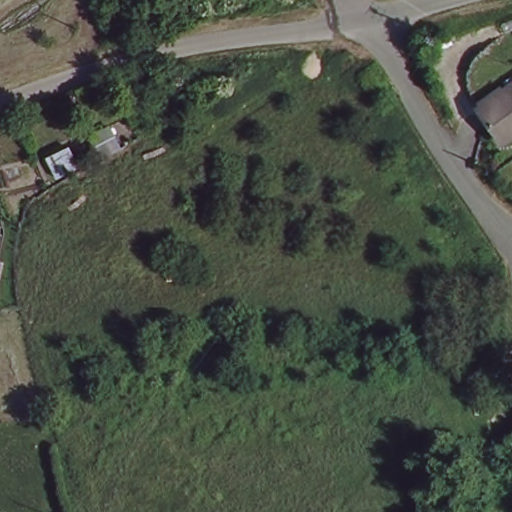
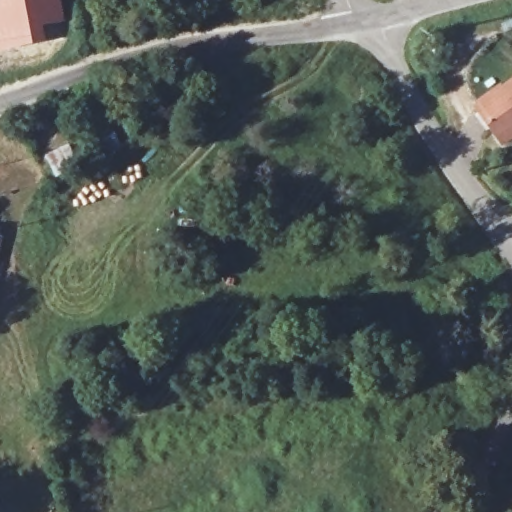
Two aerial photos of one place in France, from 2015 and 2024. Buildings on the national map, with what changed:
new [(65,22),(43,26),(45,32),(33,34),(35,45),(0,51),(0,0),(61,0),(65,22)]
unchanged [(503,145),(477,112),(512,82),(512,138),(503,145)]

